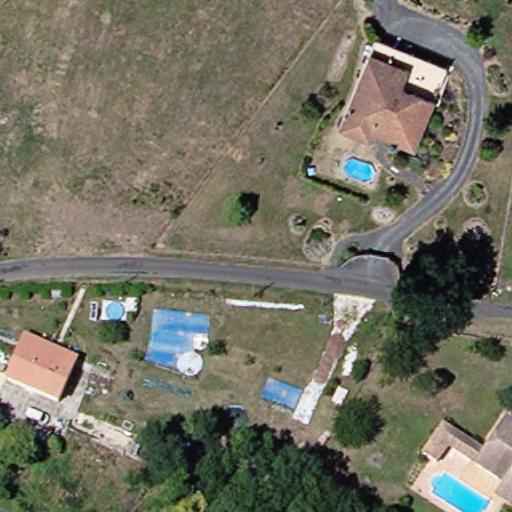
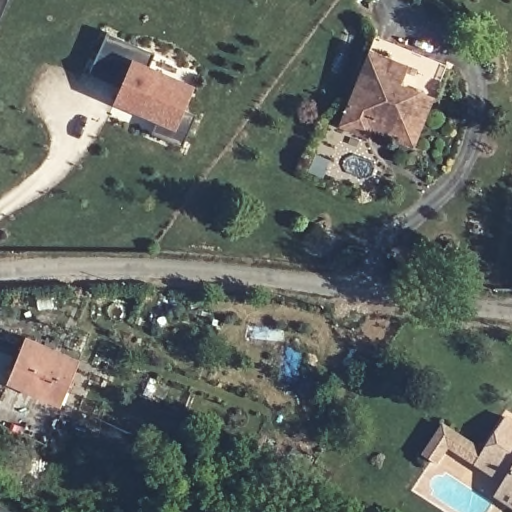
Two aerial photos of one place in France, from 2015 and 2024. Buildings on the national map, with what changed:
new [(150,67),(195,85),(184,110),(195,115),(182,146),(153,134),(157,123),(112,104),(121,84),(90,74),(107,36),(155,53),(150,67)]
unchanged [(382,43),(450,71),(440,101),(370,72),(382,43)]
unchanged [(379,133),(375,143),(346,130),(370,72),(440,101),(423,140),(420,149),(379,133)]
unchanged [(10,382),(25,347),(27,341),(77,362),(75,367),(60,403),(10,382)]
unchanged [(512,423),(512,486),(483,468),(512,423)]
unchanged [(438,440),(446,427),(460,435),(484,451),(475,464),(455,451),(445,466),(441,463),(428,455),(438,440)]
unchanged [(512,486),(512,505),(503,500),(512,486)]

